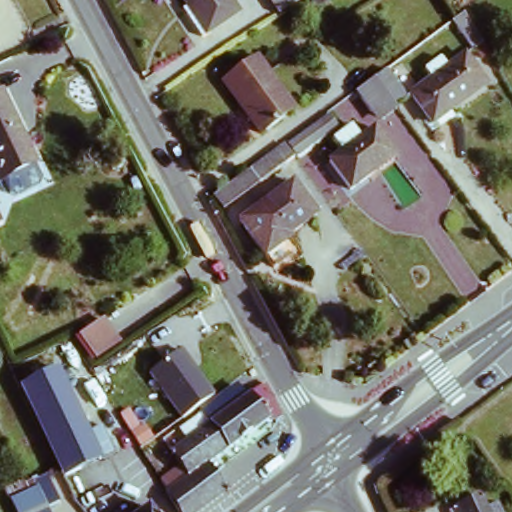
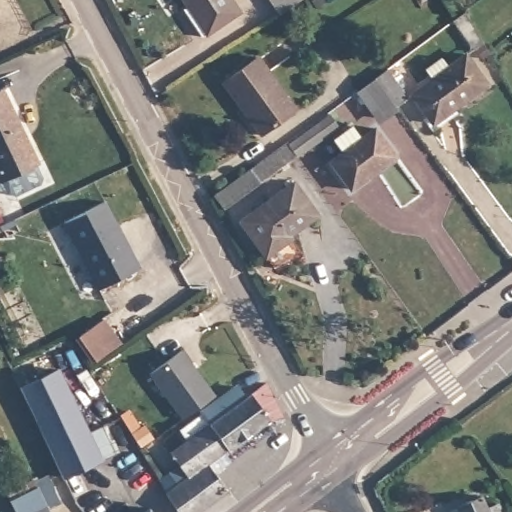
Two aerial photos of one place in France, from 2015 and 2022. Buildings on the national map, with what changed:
unchanged [(181,0),(233,0),(239,10),(211,31),(197,39),(184,17),(189,12),(181,0)]
unchanged [(275,12),(266,0),(293,0),(275,12)]
unchanged [(467,52),(448,29),(467,16),(482,40),(467,52)]
unchanged [(224,83),(256,58),(277,86),(243,107),(224,83)]
unchanged [(485,86),(439,120),(421,95),(438,82),(431,72),(446,59),(454,70),(466,61),(485,86)]
unchanged [(397,126),(383,110),(373,118),(360,100),(381,86),(394,76),(413,97),(399,109),(406,117),(397,126)]
unchanged [(261,131),(243,107),(277,86),(293,106),(261,131)]
unchanged [(44,162),(4,184),(0,177),(0,93),(5,90),(44,162)]
unchanged [(215,193),(253,167),(288,142),(328,114),(334,121),(337,124),(296,154),(262,179),(224,206),(215,193)]
unchanged [(407,148),(365,179),(345,153),(355,144),(347,134),(344,131),(363,116),(373,131),(388,121),(407,148)]
new [(30,197),(21,201),(15,197),(10,185),(44,166),(51,176),(53,183),(49,187),(30,197)]
unchanged [(244,218),(293,182),(321,220),(294,240),(301,249),(279,266),(244,218)]
new [(106,201),(142,268),(98,291),(64,222),(106,201)]
unchanged [(114,347),(94,358),(79,334),(108,318),(120,343),(114,347)]
unchanged [(240,407),(236,401),(221,410),(207,420),(212,429),(187,446),(177,431),(183,427),(148,376),(184,352),(217,400),(237,387),(247,403),(240,407)]
unchanged [(100,459),(66,477),(16,386),(48,368),(84,431),(97,423),(114,451),(100,459)]
unchanged [(207,420),(236,401),(240,407),(262,393),(274,415),(195,470),(180,450),(212,429),(207,420)]
unchanged [(162,438),(169,451),(158,460),(151,447),(162,438)]
unchanged [(169,488),(195,470),(209,492),(184,511),(169,488)]
unchanged [(51,474),(64,496),(52,502),(57,512),(16,512),(10,500),(51,474)]
unchanged [(500,512),(459,512),(456,507),(477,492),(482,502),(492,496),(500,512)]
unchanged [(166,512),(153,512),(162,506),(166,512)]

